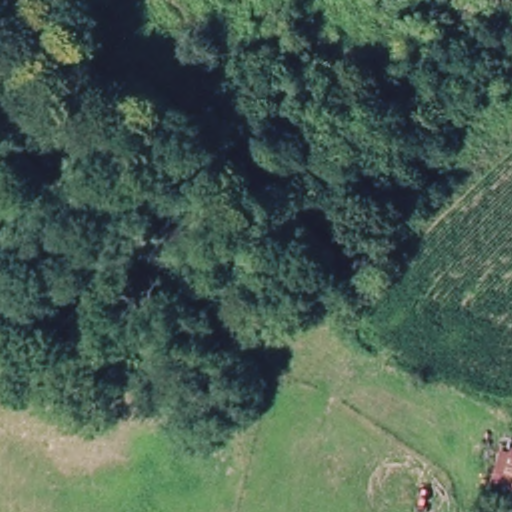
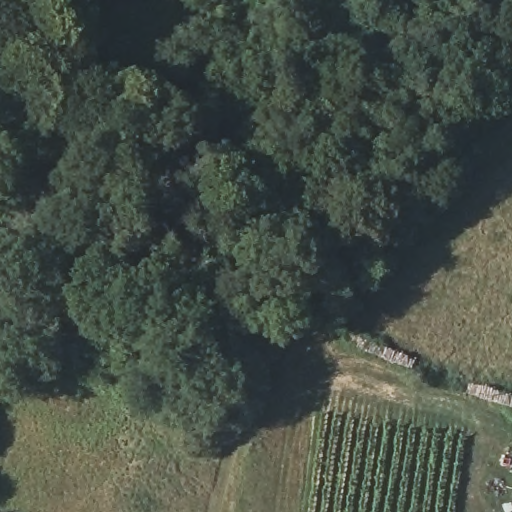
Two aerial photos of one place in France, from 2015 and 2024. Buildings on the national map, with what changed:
unchanged [(512,512),(493,512),(506,454),(512,455),(512,512)]

